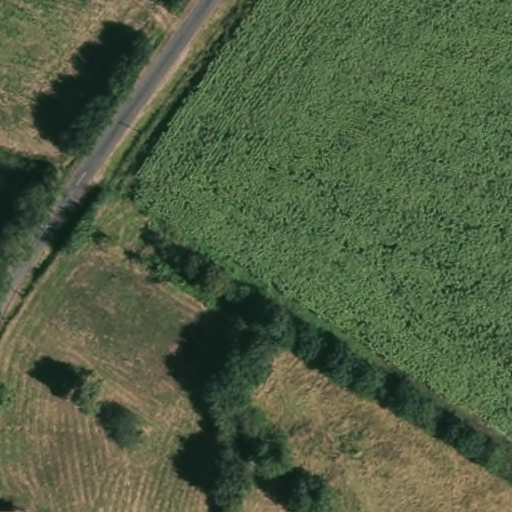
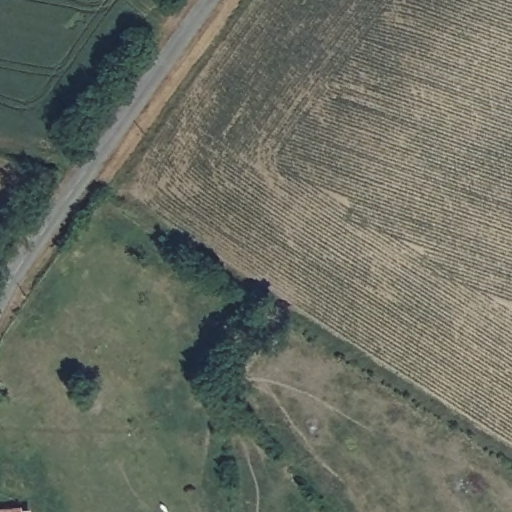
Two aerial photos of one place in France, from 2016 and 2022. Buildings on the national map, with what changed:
unchanged [(0,512),(0,505),(35,504),(35,512),(0,512)]

